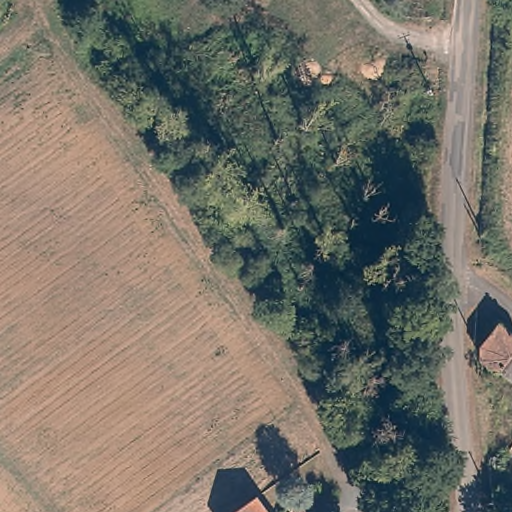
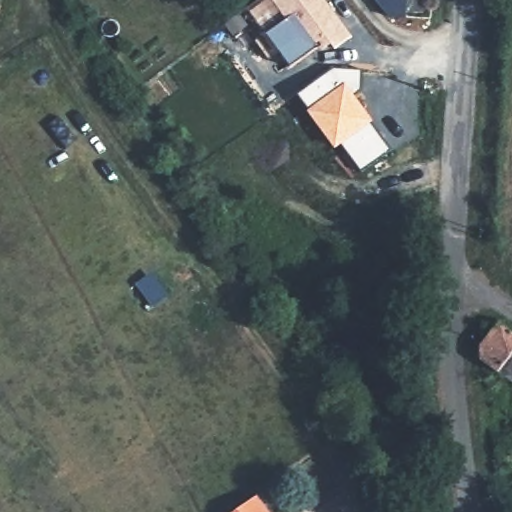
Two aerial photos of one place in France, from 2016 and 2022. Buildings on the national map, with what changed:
new [(351,35),(334,49),(330,43),(321,49),(298,40),(270,0),(325,0),(351,35)]
new [(406,17),(388,16),(374,0),(407,0),(406,17)]
new [(336,66),(364,69),(363,90),(354,96),(392,149),(360,172),(340,145),(335,148),(296,94),(336,66)]
unchanged [(512,333),(512,355),(499,371),(498,373),(481,360),(481,345),(499,322),(512,333)]
unchanged [(512,355),(512,381),(499,371),(512,355)]
unchanged [(235,512),(258,496),(269,512),(235,512)]

